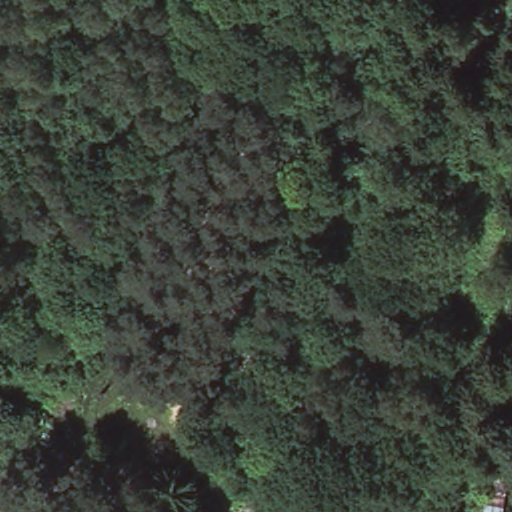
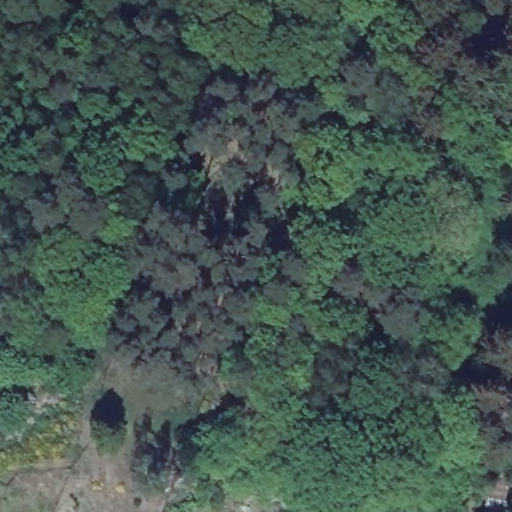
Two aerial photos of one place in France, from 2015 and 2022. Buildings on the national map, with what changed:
unchanged [(507,464),(499,512),(484,512),(493,460),(507,464)]

